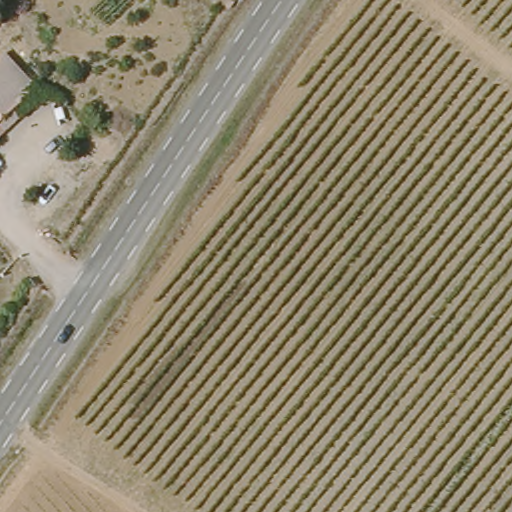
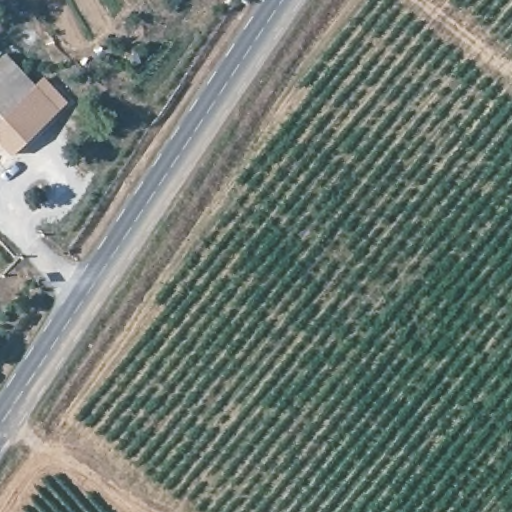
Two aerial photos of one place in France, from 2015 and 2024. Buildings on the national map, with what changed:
demolished [(40,87),(0,125),(0,60),(8,52),(40,87)]
new [(10,156),(0,145),(0,56),(5,52),(34,84),(43,76),(67,101),(10,156)]

